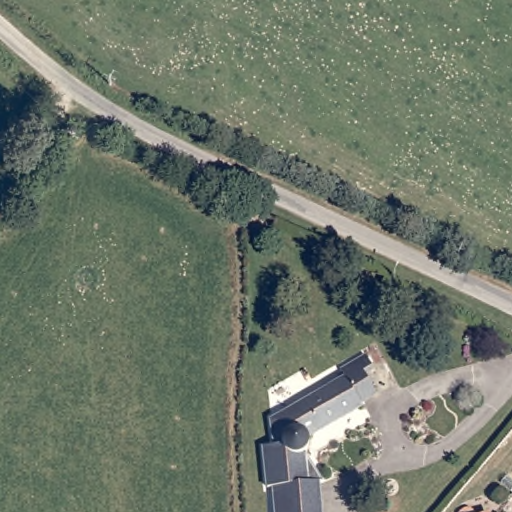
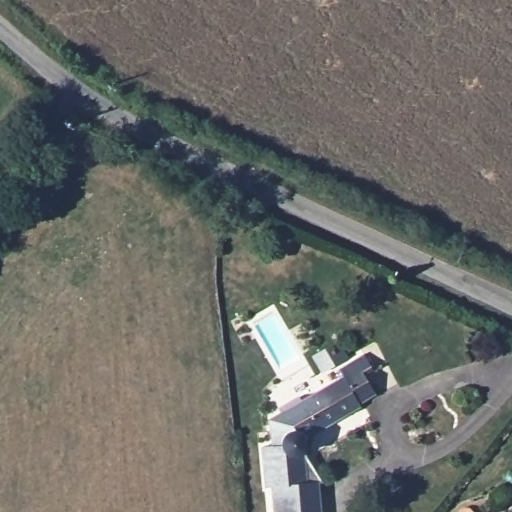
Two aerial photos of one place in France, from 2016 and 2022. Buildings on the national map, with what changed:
unchanged [(303,457),(305,484),(316,483),(318,512),(273,512),(271,487),(265,487),(262,446),(267,446),(273,445),(271,419),(278,415),(322,388),(343,376),(339,370),(364,355),(370,365),(362,371),(375,393),(310,435),(315,445),(309,456),(303,457)]
unchanged [(470,502),(475,507),(477,512),(459,512),(460,505),(470,502)]
unchanged [(486,512),(480,512),(485,510),(486,512)]

